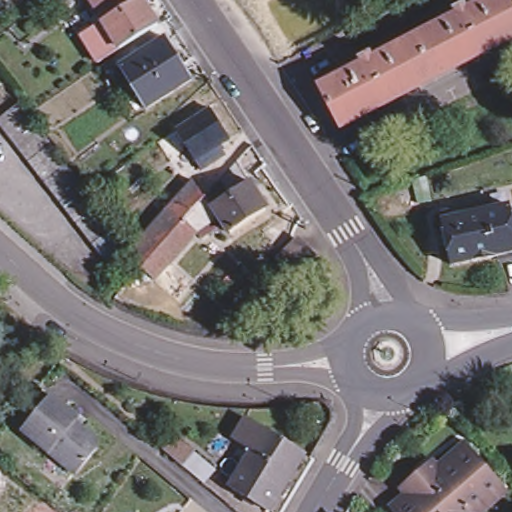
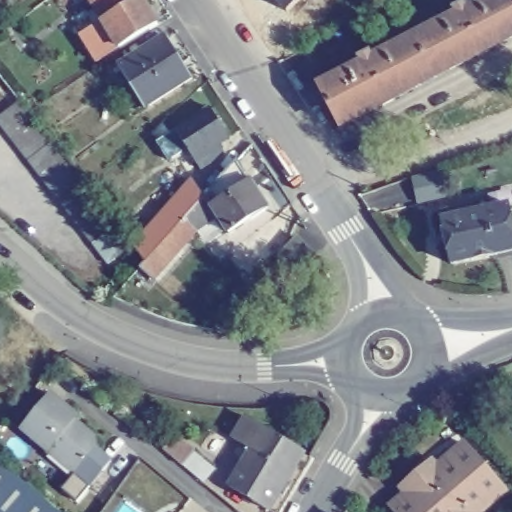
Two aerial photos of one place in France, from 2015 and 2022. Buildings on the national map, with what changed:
unchanged [(95,34),(105,28),(86,0),(141,0),(157,25),(111,58),(98,67),(82,43),(95,34)]
unchanged [(320,86),(353,69),(350,61),(363,55),(367,62),(449,20),(445,13),(458,6),(462,13),(487,0),(507,0),(512,10),(512,29),(450,61),(387,93),(338,119),(320,86)]
unchanged [(166,42),(193,83),(147,114),(121,73),(166,42)]
unchanged [(25,153),(17,143),(10,133),(1,122),(0,120),(0,108),(17,95),(25,104),(33,115),(40,125),(48,136),(56,146),(65,157),(72,168),(80,178),(88,189),(96,200),(104,210),(112,220),(120,231),(127,240),(105,258),(97,248),(90,237),(81,227),(73,217),(65,206),(57,195),(50,185),(41,175),(33,163),(25,153)]
unchanged [(206,105),(225,133),(191,156),(173,128),(206,105)]
unchanged [(245,218),(215,178),(231,157),(263,201),(265,205),(253,212),(245,218)]
unchanged [(177,220),(145,256),(132,239),(188,175),(201,192),(177,220)]
unchanged [(245,218),(226,231),(216,214),(192,229),(160,266),(183,287),(170,300),(153,282),(135,266),(142,258),(145,256),(177,220),(201,192),(215,178),(245,218)]
unchanged [(440,215),(441,214),(441,207),(447,205),(448,213),(508,202),(512,229),(512,250),(471,258),(470,256),(449,260),(440,215)]
unchanged [(296,242),(310,260),(291,275),(277,258),(296,242)]
unchanged [(48,389),(74,411),(67,418),(73,423),(76,420),(90,432),(91,442),(68,467),(18,422),(48,389)]
unchanged [(263,509),(220,483),(253,426),(297,451),(263,509)]
unchanged [(155,450),(167,435),(185,451),(205,468),(194,482),(173,464),(155,450)]
unchanged [(461,441),(501,488),(473,512),(474,512),(396,512),(388,504),(404,491),(398,484),(413,472),(428,459),(433,465),(461,441)]
new [(0,512),(0,461),(59,512),(0,512)]

